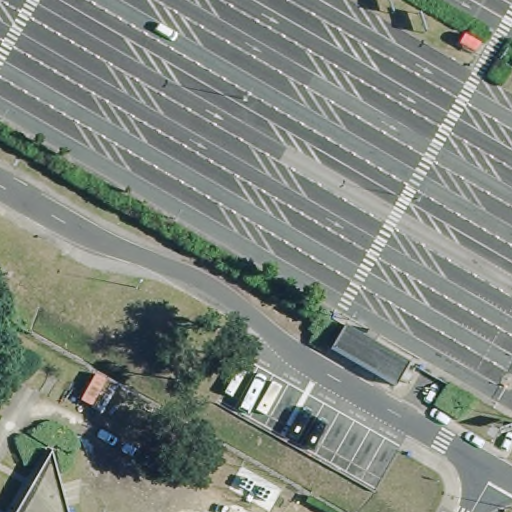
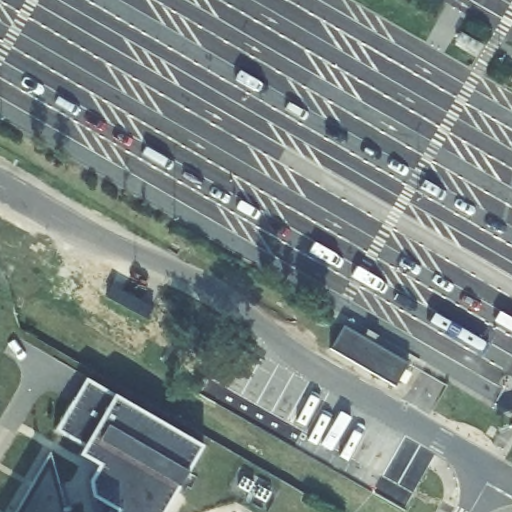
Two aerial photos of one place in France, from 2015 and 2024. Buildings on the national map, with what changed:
unchanged [(330,349),(344,325),(409,363),(396,387),(330,349)]
new [(201,444),(163,512),(94,512),(86,479),(93,466),(75,456),(79,448),(51,432),(82,377),(201,444)]
unchanged [(65,507),(67,512),(15,512),(50,451),(59,485),(65,507)]

